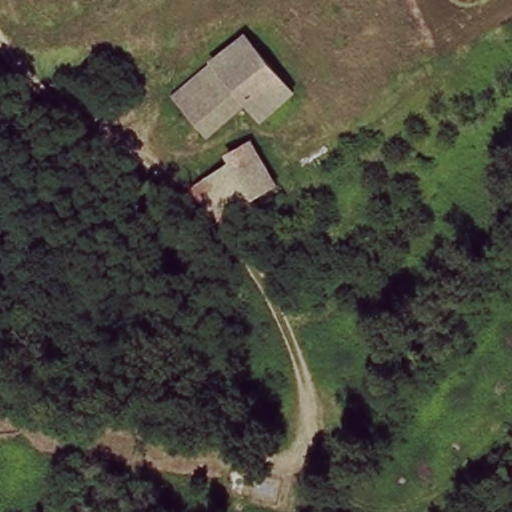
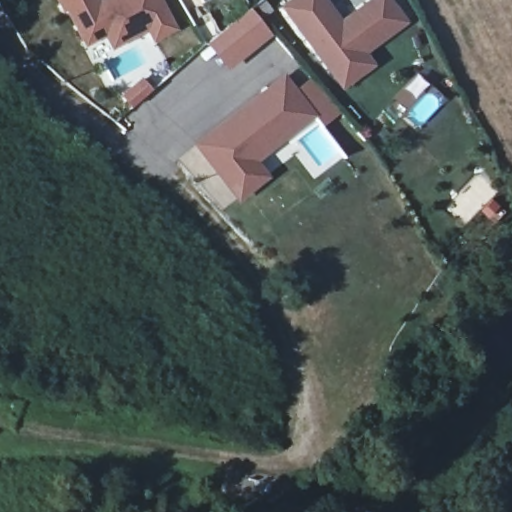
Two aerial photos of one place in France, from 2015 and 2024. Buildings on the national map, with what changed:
new [(102,0),(160,0),(177,32),(153,45),(148,34),(110,52),(105,39),(84,48),(65,14),(61,16),(53,0),(101,0),(101,1),(102,0)]
new [(200,0),(209,0),(202,4),(200,0)]
new [(325,0),(341,21),(370,0),(389,0),(407,25),(366,54),(374,66),(341,91),(279,8),(289,0),(325,0)]
demolished [(263,124),(251,110),(208,140),(170,96),(248,36),(298,96),(263,124)]
new [(239,204),(226,188),(198,151),(285,84),(308,114),(314,121),(285,144),(254,166),(267,183),(239,204)]
new [(140,85),(151,96),(131,113),(122,101),(140,85)]
demolished [(233,149),(252,136),(284,194),(263,205),(238,158),(233,149)]
demolished [(263,205),(231,222),(196,184),(238,158),(263,205)]

